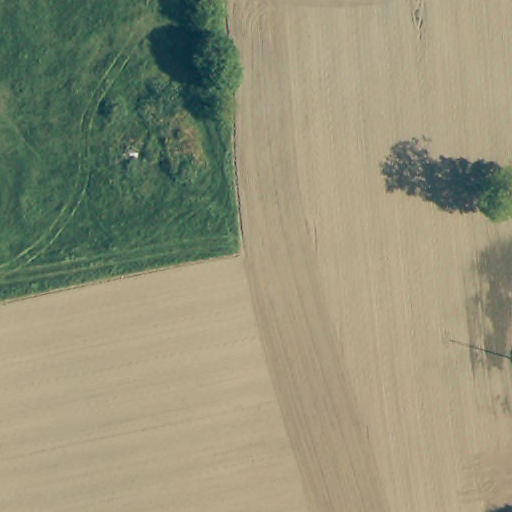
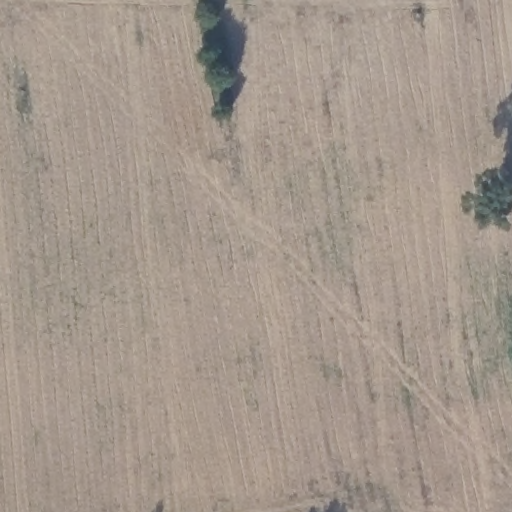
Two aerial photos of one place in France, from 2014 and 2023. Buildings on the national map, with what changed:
[]

